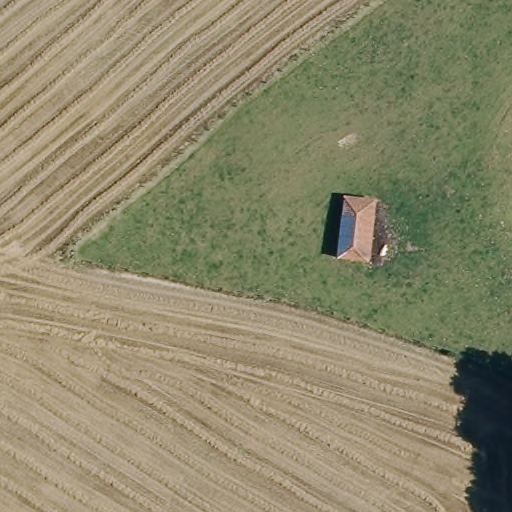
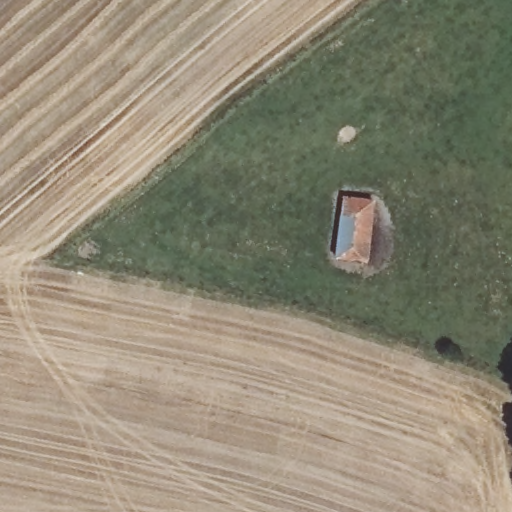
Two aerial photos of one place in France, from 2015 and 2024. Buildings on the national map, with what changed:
unchanged [(345,194),(379,198),(371,265),(338,261),(345,194)]

